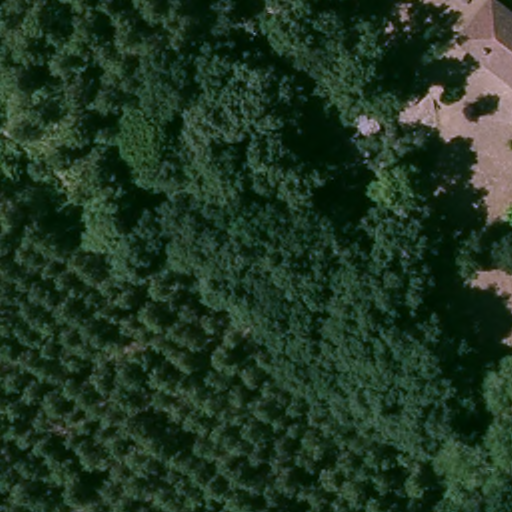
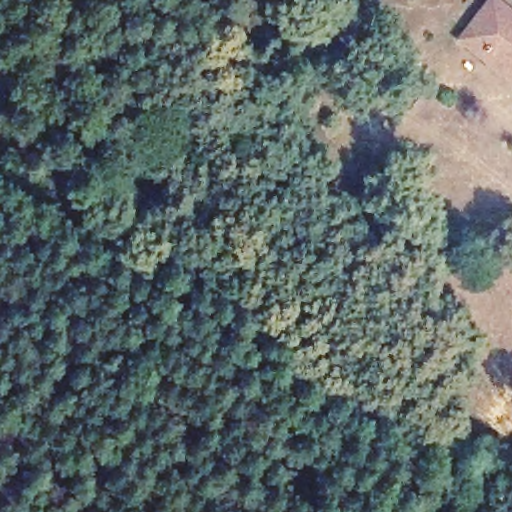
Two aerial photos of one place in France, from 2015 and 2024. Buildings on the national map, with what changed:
unchanged [(463,31),(495,0),(511,0),(512,1),(512,80),(463,31)]
unchanged [(412,56),(397,70),(384,57),(399,43),(412,56)]

